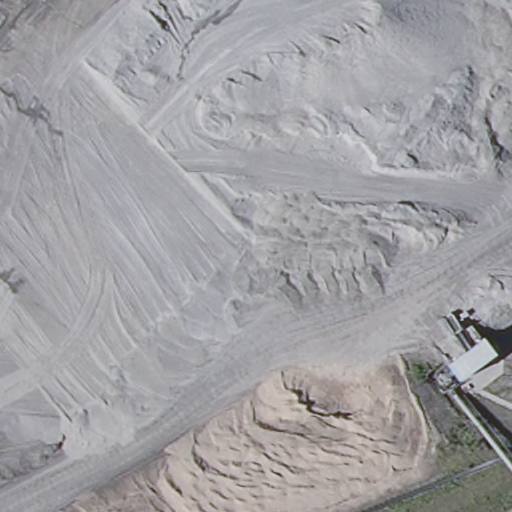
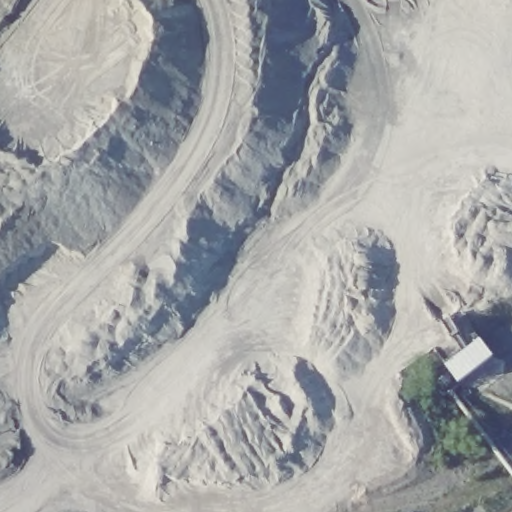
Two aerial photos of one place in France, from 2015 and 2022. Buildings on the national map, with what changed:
[]

